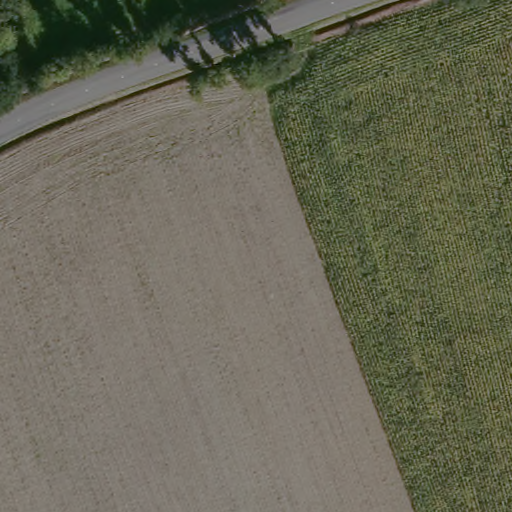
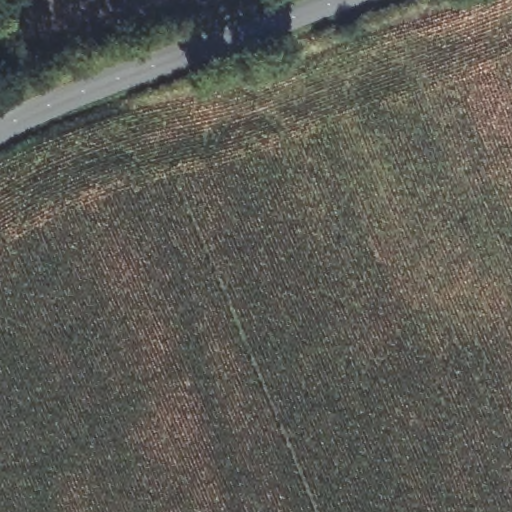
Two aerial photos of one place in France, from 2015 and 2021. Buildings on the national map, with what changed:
[]

